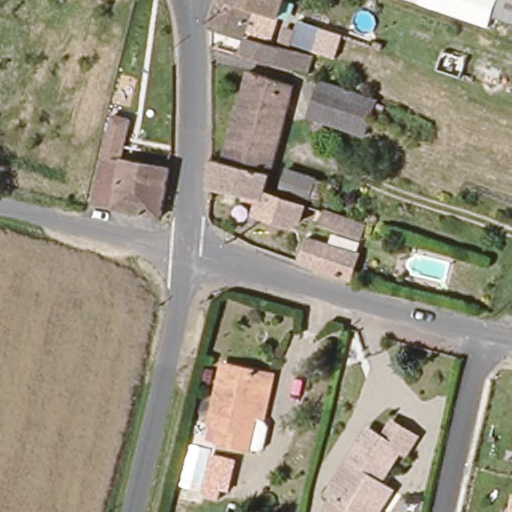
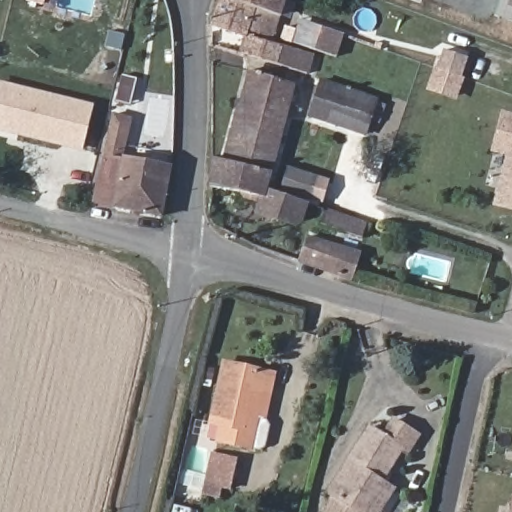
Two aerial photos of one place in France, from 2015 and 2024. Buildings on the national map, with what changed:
unchanged [(241,32),(208,20),(215,0),(278,0),(267,32),(243,25),(242,29),(241,32)]
unchanged [(414,0),(420,0),(419,1),(414,0)]
unchanged [(493,14),(488,25),(419,1),(420,0),(498,0),(493,14)]
unchanged [(493,14),(498,0),(512,0),(512,21),(493,14)]
unchanged [(321,23),(337,32),(332,51),(315,45),(321,23)]
unchanged [(308,71),(272,60),(241,51),(246,34),(278,42),(313,51),(308,71)]
new [(446,47),(469,55),(455,100),(431,91),(446,47)]
unchanged [(239,107),(241,107),(251,71),(296,84),(272,166),(249,162),(247,168),(224,163),(239,107)]
unchanged [(317,77),(373,95),(361,130),(346,125),(342,123),(306,110),(317,77)]
new [(0,81),(93,104),(82,151),(0,132),(0,81)]
new [(505,156),(490,151),(501,110),(512,113),(512,212),(492,206),(505,156)]
unchanged [(166,166),(157,215),(90,202),(102,141),(106,122),(108,114),(126,117),(124,125),(120,144),(117,157),(166,166)]
unchanged [(261,206),(262,199),(211,190),(211,160),(224,163),(247,168),(268,172),(271,173),(266,190),(297,201),(292,216),(261,206)]
unchanged [(310,200),(281,190),(287,171),(316,180),(310,200)]
unchanged [(368,234),(327,220),(332,206),(372,220),(368,234)]
unchanged [(300,258),(308,234),(357,250),(350,273),(300,258)]
unchanged [(219,438),(224,420),(211,417),(227,358),(271,370),(277,372),(267,417),(260,416),(252,447),(219,438)]
unchanged [(326,512),(335,495),(330,492),(372,426),(404,448),(390,470),(382,483),(389,487),(396,492),(383,512),(326,512)]
unchanged [(238,462),(232,487),(207,480),(213,457),(238,462)]

